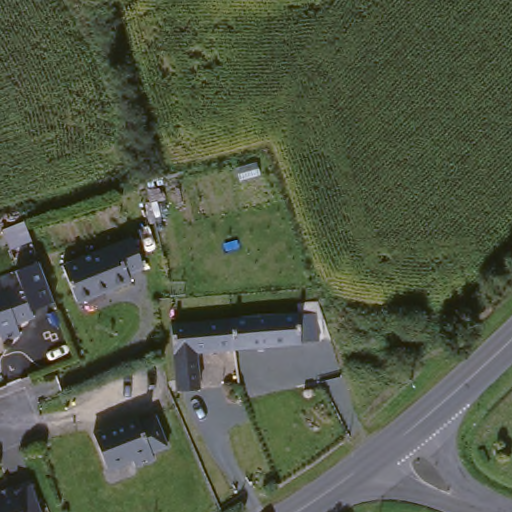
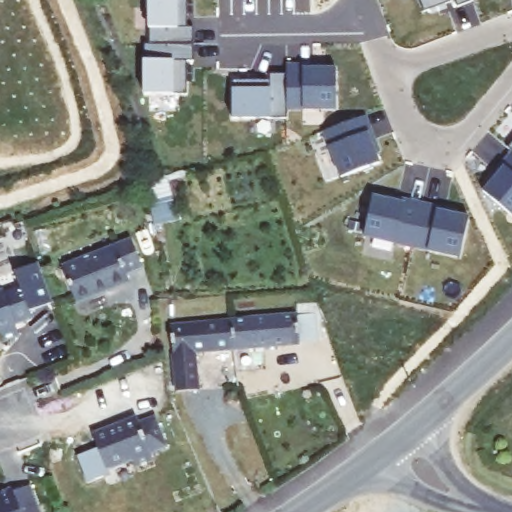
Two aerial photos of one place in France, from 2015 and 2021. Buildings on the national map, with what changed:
new [(189,0),(189,26),(195,27),(194,44),(150,43),(151,0),(189,0)]
new [(459,8),(456,1),(425,13),(420,0),(474,0),(474,1),(459,8)]
new [(145,43),(150,43),(194,44),(194,61),(187,61),(187,94),(144,93),(145,43)]
new [(288,119),(234,119),(233,80),(271,80),(270,74),(288,74),(288,70),(337,69),(337,110),(304,110),(288,110),(288,119)]
new [(380,164),(342,178),(331,147),(325,132),(333,129),(363,118),(380,164)]
new [(512,144),(512,151),(509,149),(512,144)]
new [(512,160),(512,216),(485,193),(512,160)]
new [(398,244),(365,237),(374,197),(422,208),(469,218),(461,258),(429,250),(413,247),(398,244)]
unchanged [(136,276),(119,283),(123,290),(71,313),(56,278),(123,249),(136,276)]
unchanged [(1,299),(18,292),(29,324),(12,331),(16,341),(0,347),(0,297),(1,299)]
unchanged [(240,322),(261,321),(275,320),(295,319),(295,322),(311,321),(311,331),(313,348),(298,349),(298,350),(195,357),(197,395),(174,397),(174,383),(173,380),(173,359),(171,327),(223,324),(240,322)]
unchanged [(151,427),(163,458),(147,465),(150,472),(131,480),(128,472),(103,483),(88,448),(132,429),(134,434),(151,427)]
unchanged [(4,496),(6,501),(23,495),(29,512),(0,512),(0,498),(4,496)]

